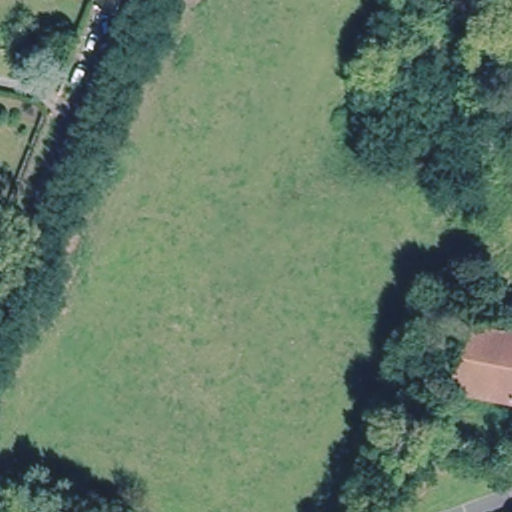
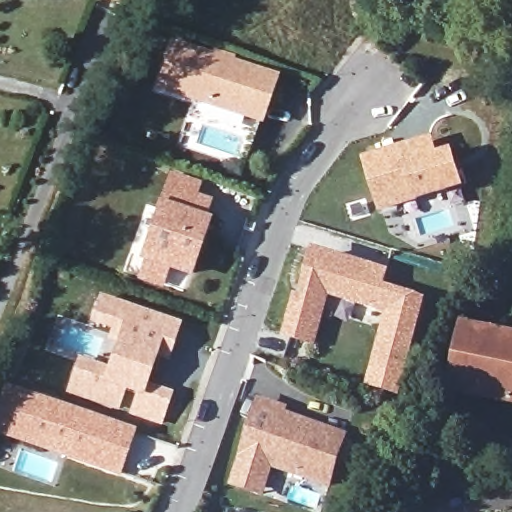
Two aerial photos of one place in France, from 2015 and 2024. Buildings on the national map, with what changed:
new [(262,123),(253,120),(161,89),(175,48),(266,79),(276,82),(262,123)]
new [(435,137),(440,153),(454,149),(466,188),(380,212),(364,160),(435,137)]
new [(198,197),(213,202),(208,220),(213,222),(191,280),(169,272),(163,288),(136,279),(143,262),(139,261),(170,172),(202,184),(198,197)]
new [(295,294),(306,297),(308,291),(302,289),(314,250),(391,272),(387,286),(427,299),(399,395),(365,386),(386,314),(331,297),(317,346),(282,337),(295,294)]
new [(168,363),(156,358),(148,383),(173,392),(162,425),(129,413),(135,395),(125,392),(119,411),(66,392),(78,357),(108,366),(113,348),(106,346),(110,331),(90,323),(99,294),(181,322),(168,363)]
unchanged [(512,344),(512,396),(457,385),(468,335),(512,344)]
new [(0,438),(0,405),(6,387),(136,430),(120,478),(0,438)]
new [(261,400),(291,410),(288,416),(348,436),(331,488),(272,468),(264,496),(231,484),(261,400)]

